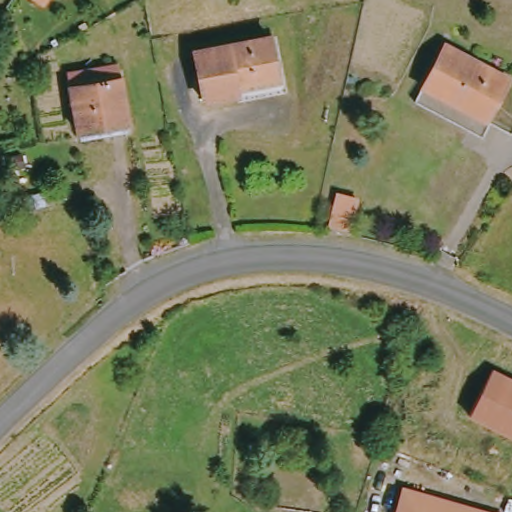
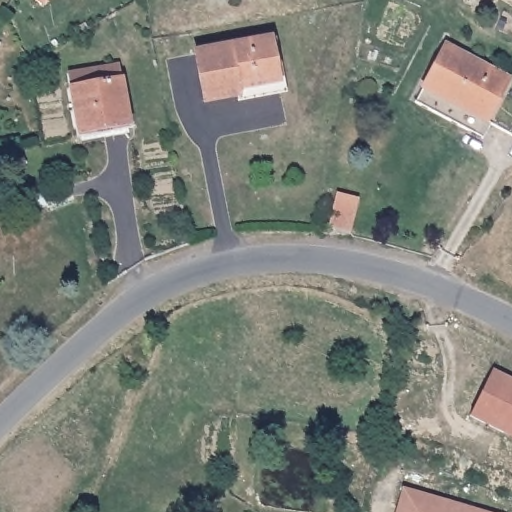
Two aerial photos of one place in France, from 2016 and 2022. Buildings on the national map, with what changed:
unchanged [(35,0),(55,0),(49,9),(35,0)]
unchanged [(473,124),(419,96),(428,81),(451,39),(512,70),(512,74),(492,113),(497,116),(488,132),(473,124)]
unchanged [(231,102),(231,94),(199,95),(197,44),(275,44),(276,89),(276,101),(231,102)]
unchanged [(83,124),(76,79),(74,70),(127,61),(129,71),(136,115),(138,123),(84,132),(83,124)]
unchanged [(344,204),(361,209),(354,238),(337,234),(344,204)]
unchanged [(512,384),(512,431),(508,429),(505,436),(471,419),(493,374),(512,384)]
unchanged [(404,494),(465,512),(398,512),(404,494)]

